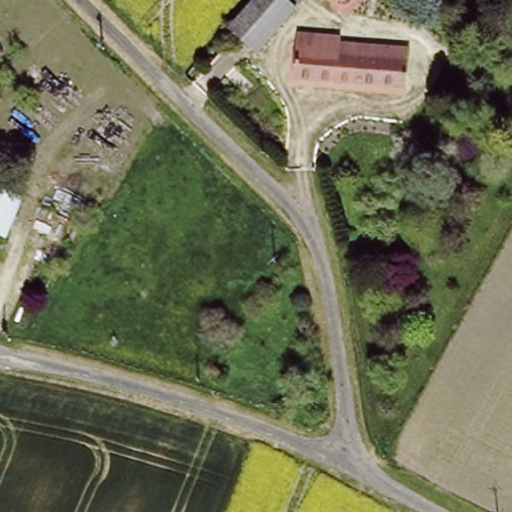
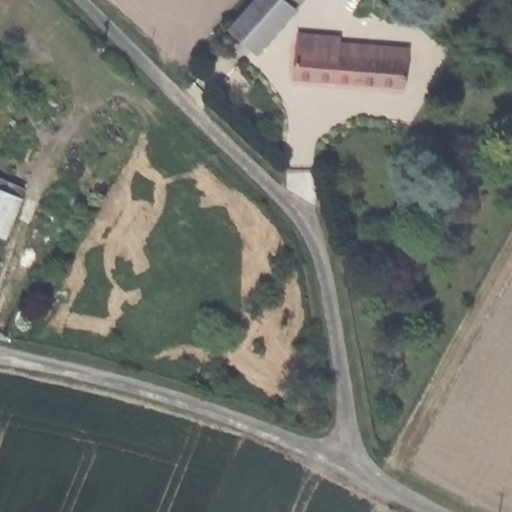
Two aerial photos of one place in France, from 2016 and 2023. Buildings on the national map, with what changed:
unchanged [(231,30),(256,0),(289,0),(299,8),(262,55),(231,30)]
unchanged [(289,0),(305,0),(299,8),(289,0)]
unchanged [(342,41),(409,49),(405,89),(298,77),(300,50),(303,30),(320,32),(343,35),(342,41)]
unchanged [(21,200),(5,242),(0,240),(0,192),(21,200)]

